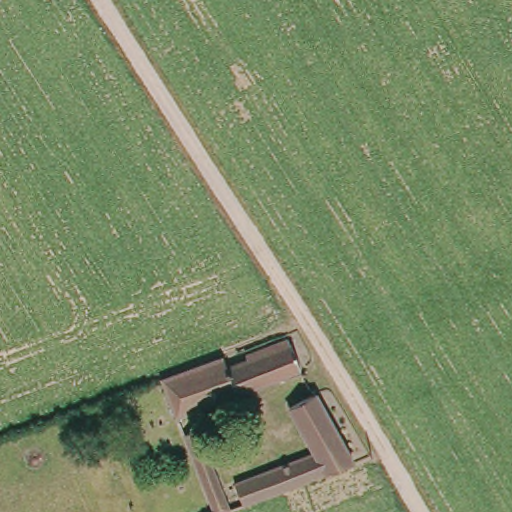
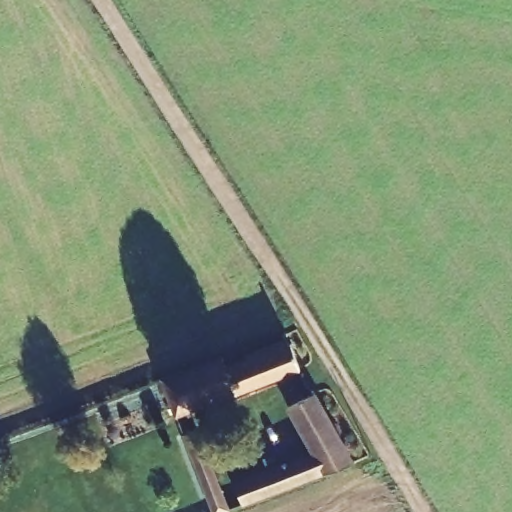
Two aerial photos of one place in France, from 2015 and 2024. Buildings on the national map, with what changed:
unchanged [(231,371),(290,353),(300,377),(174,420),(163,380),(192,369),(226,356),(231,371)]
unchanged [(243,485),(314,456),(294,408),(321,400),(349,471),(252,508),(243,485)]
unchanged [(228,510),(223,512),(206,512),(185,436),(206,431),(228,510)]

